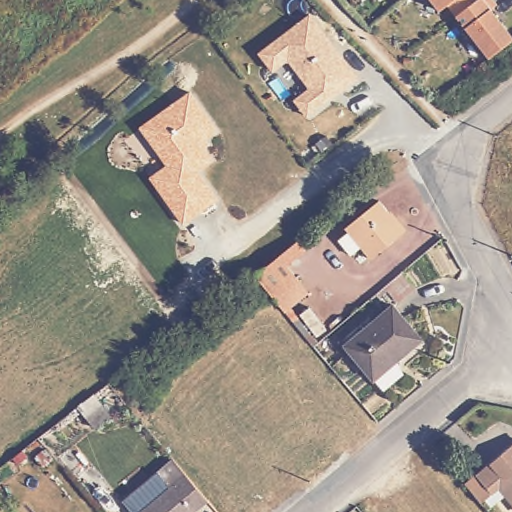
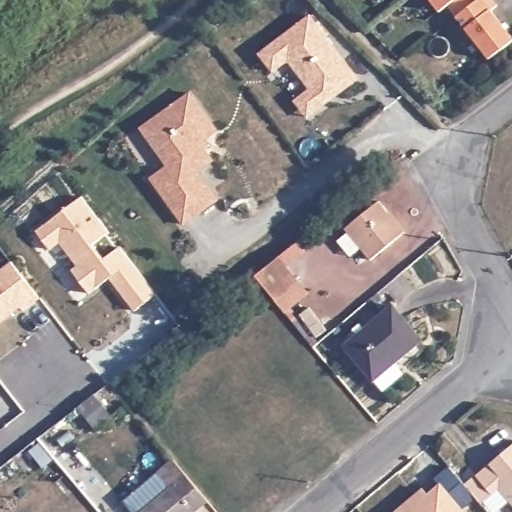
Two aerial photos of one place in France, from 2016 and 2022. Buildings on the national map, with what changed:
unchanged [(448,5),(440,12),(431,0),(492,0),(497,5),(491,10),(512,38),(512,41),(489,59),(448,5)]
unchanged [(308,14),(361,82),(307,122),(292,101),(308,90),(288,65),(271,76),(258,52),(308,14)]
unchanged [(138,130),(189,91),(220,130),(207,139),(211,144),(206,148),(214,160),(199,173),(219,199),(184,225),(148,180),(165,165),(138,130)]
new [(82,195),(109,231),(94,245),(105,258),(121,246),(157,295),(134,311),(109,279),(80,297),(65,277),(70,272),(53,249),(51,250),(37,230),(82,195)]
unchanged [(403,234),(369,260),(359,247),(349,255),(337,239),(346,231),(344,227),(377,201),(403,234)]
unchanged [(286,315),(276,303),(254,277),(279,258),(300,283),(310,294),(286,315)]
new [(12,260),(40,297),(23,311),(20,308),(0,323),(0,269),(12,260)]
unchanged [(420,335),(393,357),(401,368),(380,385),(343,340),(391,300),(420,335)]
unchanged [(112,416),(100,425),(93,415),(105,406),(112,416)]
unchanged [(480,471),(512,444),(512,494),(504,484),(496,491),(495,490),(482,500),(467,482),(480,471)]
unchanged [(162,471),(178,458),(213,499),(197,512),(142,512),(174,487),(162,471)]
new [(423,487),(428,492),(439,482),(435,477),(450,465),(465,483),(467,482),(479,496),(463,508),(466,512),(393,512),(423,487)]

